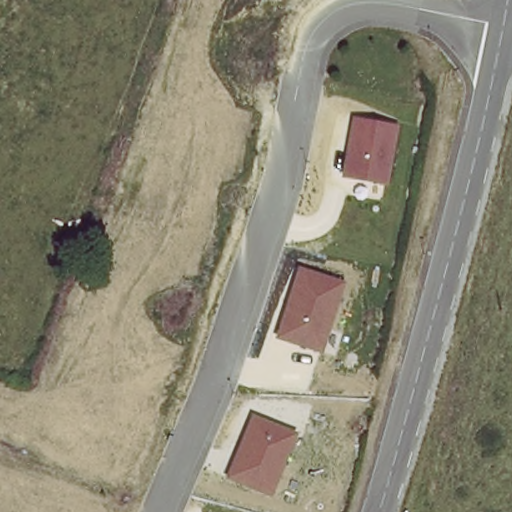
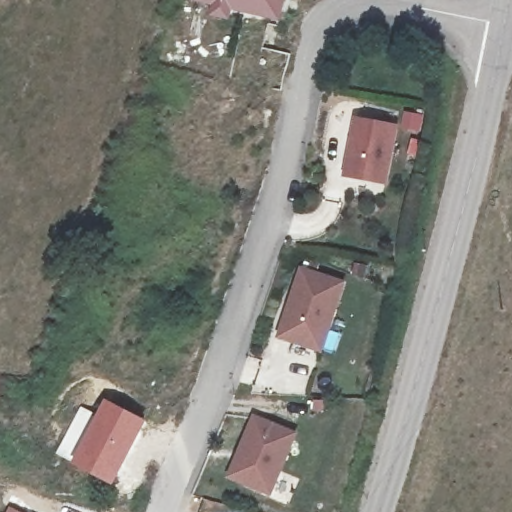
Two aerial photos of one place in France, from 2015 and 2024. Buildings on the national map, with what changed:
new [(229,19),(212,15),(214,5),(191,0),(286,0),(282,21),(232,10),(229,19)]
unchanged [(396,124),(386,184),(340,175),(351,117),(396,124)]
unchanged [(300,264),(345,278),(322,352),(276,338),(300,264)]
new [(145,419),(113,484),(68,460),(54,453),(80,405),(94,413),(103,397),(145,419)]
unchanged [(250,412),(299,430),(274,496),(226,476),(250,412)]
new [(9,505),(22,512),(5,512),(9,505)]

